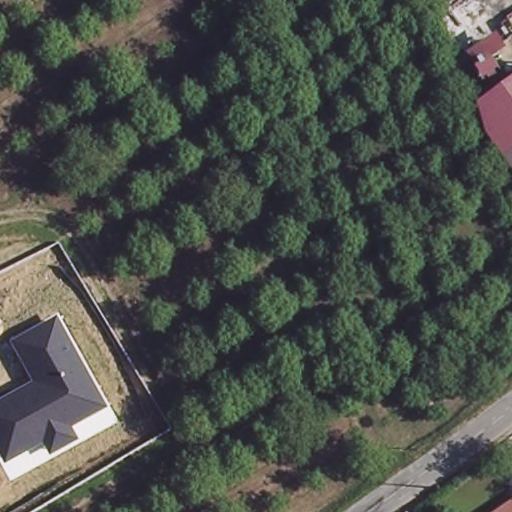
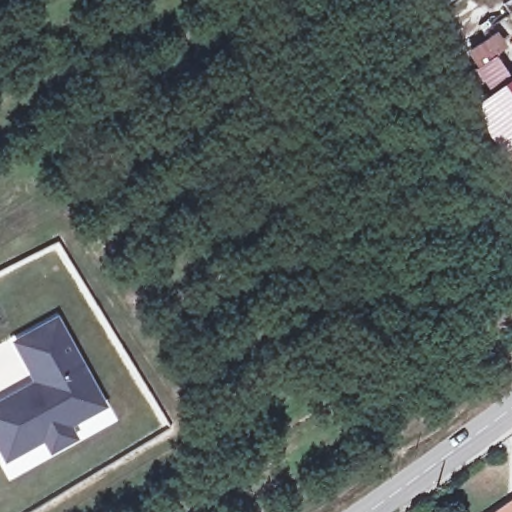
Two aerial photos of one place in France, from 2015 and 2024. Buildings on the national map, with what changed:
unchanged [(512,156),(500,164),(467,120),(512,87),(512,156)]
unchanged [(512,156),(512,180),(500,164),(512,156)]
unchanged [(7,454),(0,441),(0,410),(45,387),(25,347),(32,342),(64,326),(99,397),(107,413),(70,431),(72,435),(51,446),(49,442),(10,461),(7,454)]
unchanged [(512,505),(512,512),(501,512),(512,505)]

